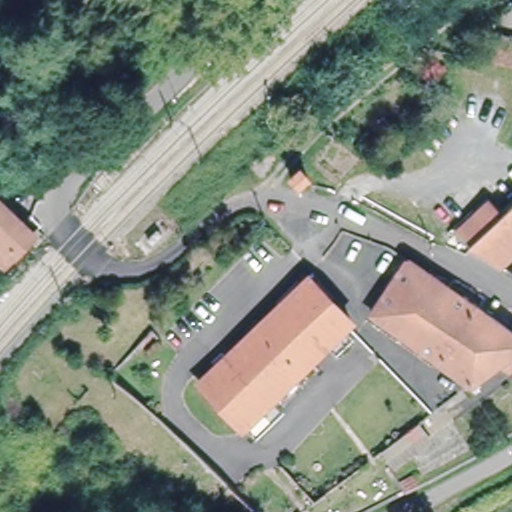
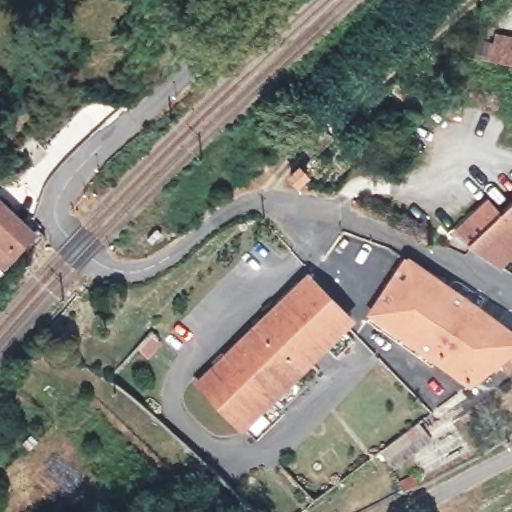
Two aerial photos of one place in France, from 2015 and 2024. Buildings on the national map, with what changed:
unchanged [(492,40),(512,40),(512,65),(489,60),(492,40)]
unchanged [(31,240),(8,269),(0,262),(0,203),(36,235),(40,232),(45,237),(38,246),(31,240)]
unchanged [(499,269),(459,239),(491,207),(504,217),(512,209),(512,257),(499,269)]
unchanged [(506,357),(469,385),(369,314),(405,260),(512,333),(512,361),(506,357)]
unchanged [(307,278),(350,323),(347,326),(241,427),(199,384),(202,381),(307,278)]
unchanged [(394,472),(378,451),(418,421),(432,440),(394,472)]
unchanged [(0,481),(4,484),(0,489),(0,481)]

